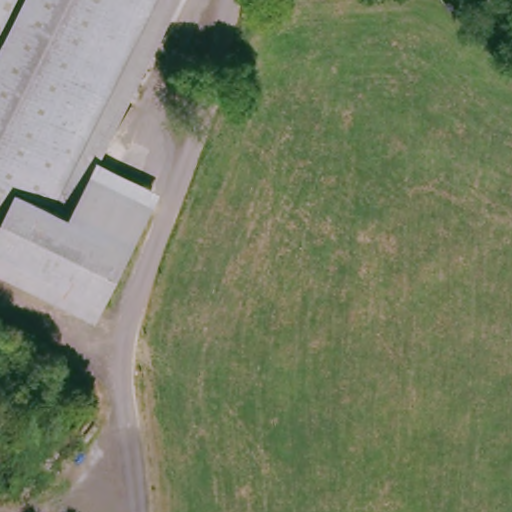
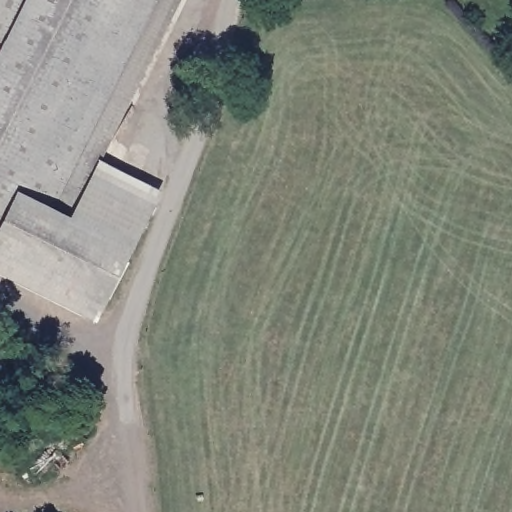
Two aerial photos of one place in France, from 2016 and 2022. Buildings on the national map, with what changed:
unchanged [(94,169),(157,204),(96,323),(0,272),(0,47),(3,41),(0,40),(0,0),(179,0),(94,169)]

